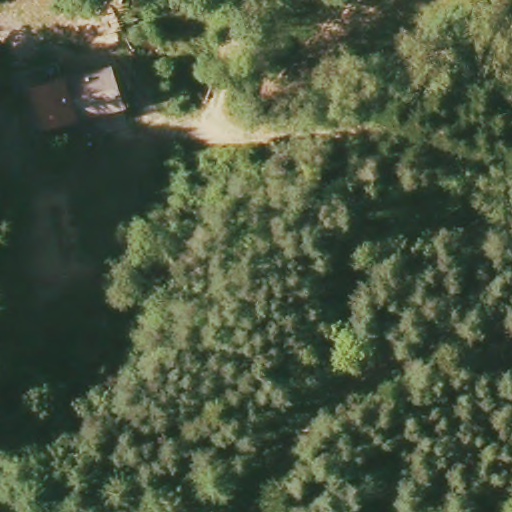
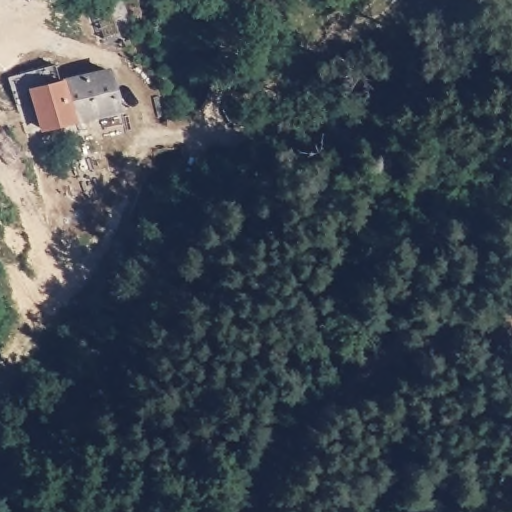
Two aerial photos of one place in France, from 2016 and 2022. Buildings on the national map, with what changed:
unchanged [(26,88),(102,73),(113,115),(42,127),(26,88)]

